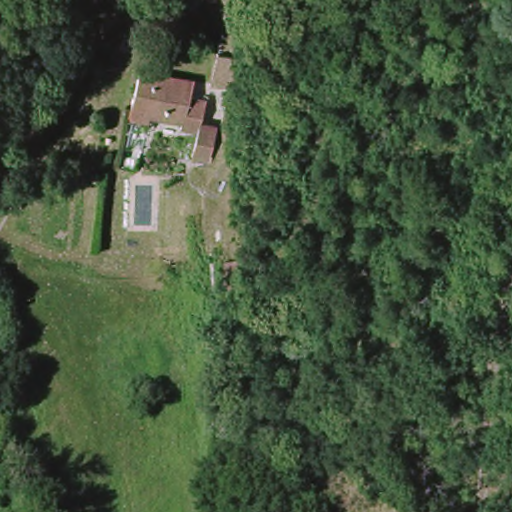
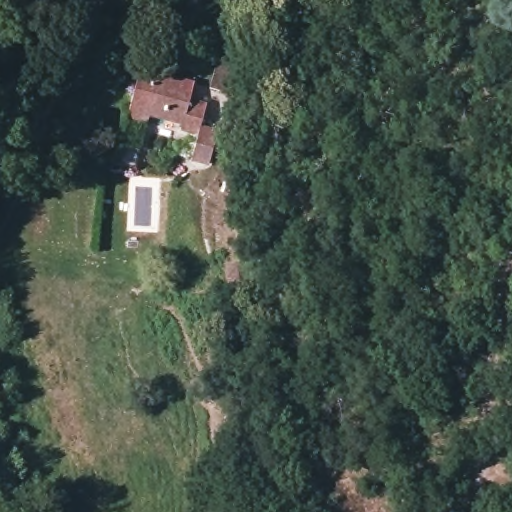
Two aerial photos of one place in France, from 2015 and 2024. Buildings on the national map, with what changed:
unchanged [(217,56),(243,64),(235,95),(210,89),(217,56)]
unchanged [(137,66),(194,81),(189,101),(205,105),(199,128),(218,131),(208,167),(189,161),(195,134),(177,129),(179,124),(147,115),(143,127),(122,121),(137,66)]

